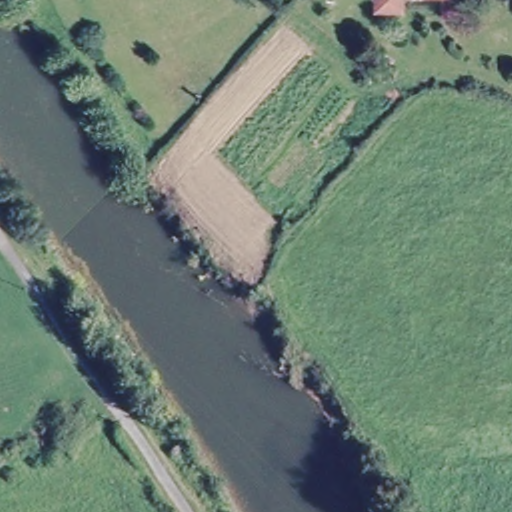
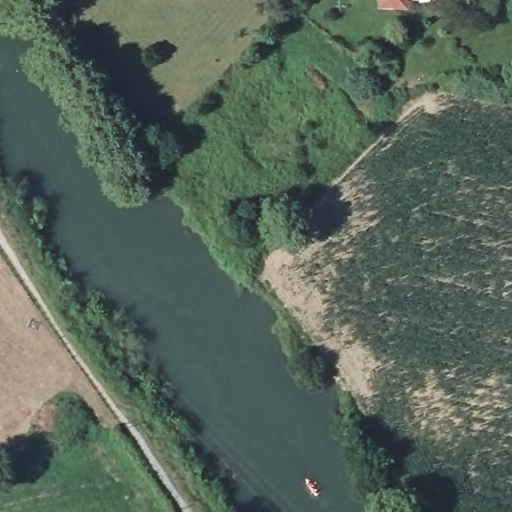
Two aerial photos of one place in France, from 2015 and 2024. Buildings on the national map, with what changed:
unchanged [(374,0),(397,0),(396,2),(373,1),(374,0)]
unchanged [(119,433),(132,451),(120,460),(107,443),(119,433)]

